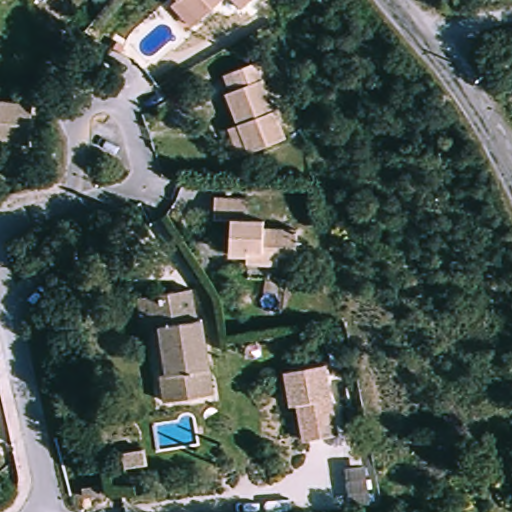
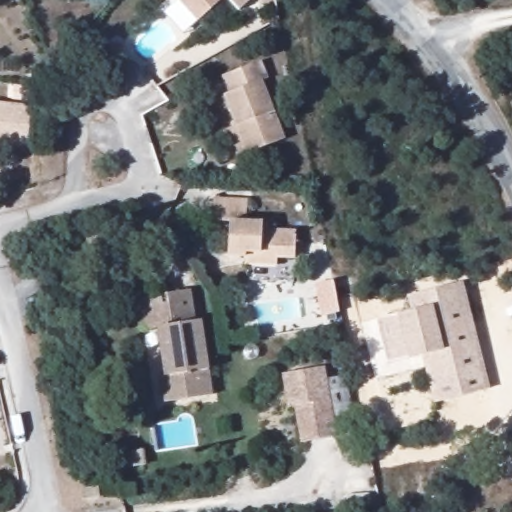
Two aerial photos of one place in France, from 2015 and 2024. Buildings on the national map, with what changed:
unchanged [(220,0),(197,23),(190,29),(168,8),(175,1),(174,0),(220,0)]
unchanged [(228,0),(245,0),(238,9),(228,0)]
unchanged [(127,41),(134,45),(131,51),(123,46),(127,41)]
unchanged [(217,129),(233,124),(224,92),(232,90),(226,71),(264,61),(269,79),(264,81),(280,143),(241,155),(226,160),(217,129)]
unchanged [(21,133),(5,131),(0,132),(0,99),(32,103),(21,133)]
new [(5,131),(21,133),(19,139),(6,138),(0,139),(0,132),(5,131)]
unchanged [(238,260),(239,249),(224,247),(228,218),(211,214),(214,189),(248,195),(245,217),(261,220),(262,227),(292,231),(288,257),(273,254),(270,266),(238,260)]
new [(413,310),(409,295),(463,283),(486,391),(432,403),(422,355),(385,363),(376,317),(413,310)]
unchanged [(156,330),(154,294),(189,291),(193,327),(200,327),(203,343),(148,351),(146,331),(156,330)]
unchanged [(128,332),(125,296),(154,294),(156,330),(146,331),(128,332)]
unchanged [(203,343),(212,396),(156,402),(148,351),(203,343)]
unchanged [(282,372),(322,367),(334,433),(302,437),(295,402),(288,403),(282,372)]
unchanged [(148,469),(123,472),(122,452),(147,449),(148,469)]

